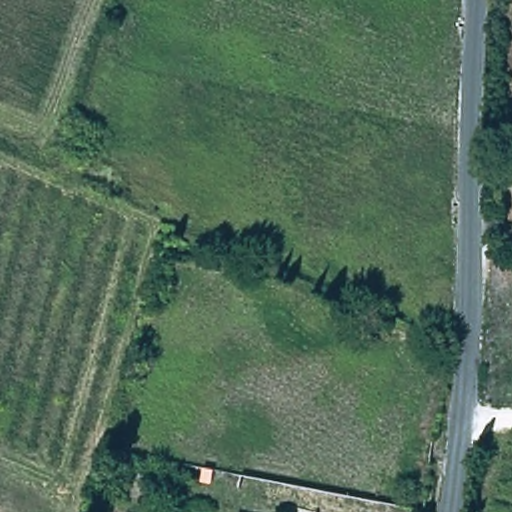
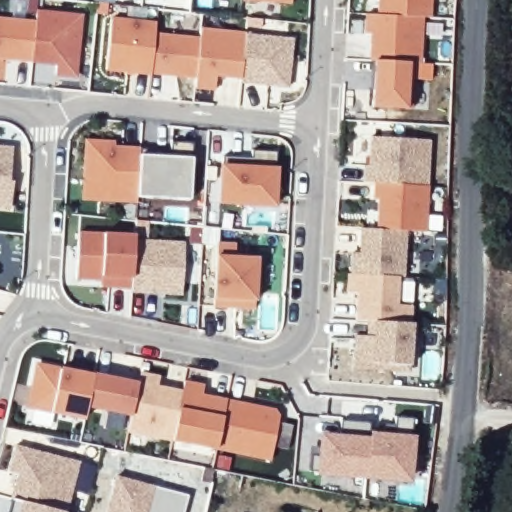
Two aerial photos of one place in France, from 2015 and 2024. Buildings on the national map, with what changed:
new [(290,5),(245,0),(290,0),(290,5)]
new [(430,18),(422,17),(376,15),(377,0),(431,0),(430,18)]
new [(77,79),(54,77),(55,66),(30,62),(35,22),(35,10),(82,14),(77,79)]
new [(420,65),(415,65),(372,63),(367,63),(367,35),(363,35),(364,14),(376,15),(422,17),(420,65)]
new [(0,59),(0,19),(35,22),(30,62),(0,59)]
new [(105,70),(110,20),(155,25),(153,33),(149,75),(105,70)]
new [(215,77),(214,91),(195,90),(195,79),(199,37),(200,29),(242,33),(239,79),(215,77)]
new [(149,75),(153,33),(199,37),(195,79),(149,75)]
new [(238,84),(239,79),(242,33),(292,38),(289,88),(238,84)]
new [(411,111),(369,109),(372,63),(415,65),(411,111)]
new [(425,186),(372,183),(362,183),(362,167),(368,167),(369,137),(428,140),(425,186)]
new [(80,201),(84,139),(114,141),(114,146),(137,147),(137,156),(135,197),(135,204),(80,201)]
new [(135,197),(137,156),(137,147),(170,149),(170,142),(192,144),(191,159),(189,200),(135,197)]
new [(12,147),(7,181),(12,181),(9,209),(0,208),(0,146),(12,147)]
new [(215,206),(217,165),(222,166),(222,157),(250,158),(251,151),(276,152),(276,169),(275,208),(215,206)]
new [(424,232),(405,231),(374,230),(376,201),(370,201),(372,183),(425,186),(424,232)]
new [(402,277),(396,277),(348,275),(349,253),(357,253),(358,229),(374,230),(405,231),(402,277)]
new [(102,233),(134,235),(133,240),(130,288),(100,287),(100,281),(75,280),(75,232),(102,233)]
new [(130,294),(130,288),(133,240),(183,242),(180,296),(130,294)]
new [(211,307),(212,300),(213,256),(214,242),(235,244),(235,257),(257,258),(254,310),(211,307)]
new [(396,305),(411,306),(410,324),(370,322),(353,321),(354,294),(347,294),(348,275),(396,277),(396,305)]
new [(409,366),(408,374),(351,371),(353,337),(369,337),(370,322),(410,324),(409,366)]
new [(49,413),(25,408),(35,362),(59,367),(92,373),(85,408),(82,420),(49,413)]
new [(125,432),(129,417),(136,382),(138,372),(159,376),(157,386),(182,391),(178,408),(170,442),(125,432)]
new [(85,408),(92,373),(136,382),(129,417),(85,408)]
new [(170,442),(178,408),(182,391),(184,381),(203,385),(202,395),(227,399),(215,450),(170,442)]
new [(215,450),(227,399),(273,408),(278,415),(269,462),(215,450)]
new [(311,457),(320,458),(322,439),(339,440),(340,421),(370,423),(369,431),(394,434),(395,417),(414,419),(409,480),(310,474),(311,457)]
new [(7,472),(14,446),(78,462),(65,512),(60,512),(10,499),(17,475),(7,472)]
new [(155,485),(147,512),(105,512),(115,474),(155,485)]
new [(189,494),(184,512),(147,512),(155,485),(189,494)]
new [(60,512),(7,512),(10,499),(60,512)]

